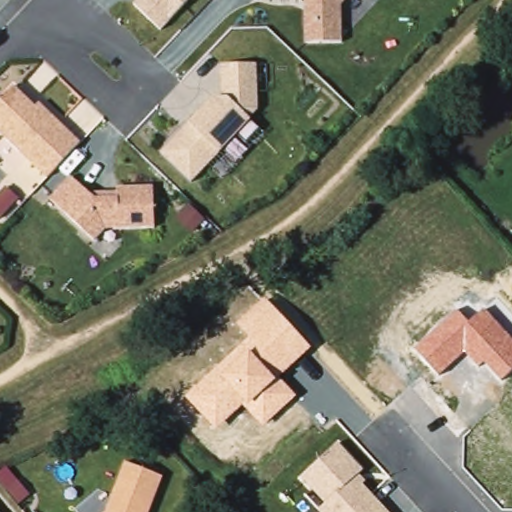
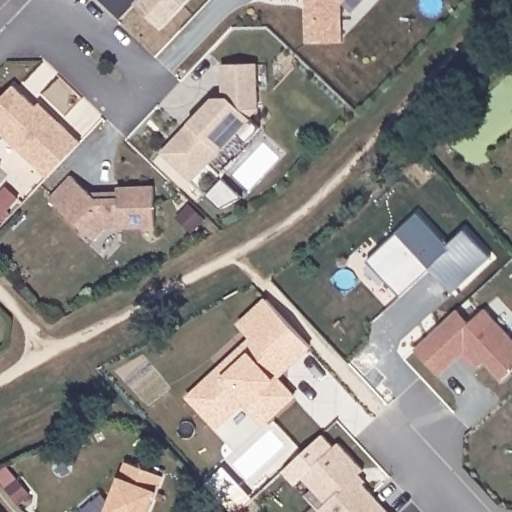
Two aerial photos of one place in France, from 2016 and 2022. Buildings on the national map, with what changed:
unchanged [(135,4),(138,0),(189,0),(161,29),(135,4)]
unchanged [(343,42),(307,42),(307,9),(306,0),(345,0),(342,4),(343,42)]
unchanged [(191,122),(189,120),(216,93),(221,95),(219,63),(257,61),(258,106),(251,113),(253,115),(222,150),(193,180),(163,152),(191,122)]
unchanged [(60,122),(81,142),(60,165),(48,177),(28,158),(6,137),(0,131),(0,100),(14,85),(36,107),(40,102),(60,122)]
unchanged [(154,186),(156,227),(123,227),(106,229),(96,240),(82,228),(51,199),(71,176),(91,193),(118,192),(118,187),(154,186)]
new [(223,177),(243,197),(221,208),(207,195),(223,177)]
new [(367,260),(418,212),(448,244),(465,229),(491,257),(453,292),(430,267),(400,296),(367,260)]
unchanged [(278,378),(296,397),(263,428),(242,406),(215,430),(184,397),(251,338),(237,324),(263,297),(311,348),(278,378)]
unchanged [(502,382),(484,362),(478,367),(466,353),(439,377),(413,351),(456,311),(468,323),(484,308),(512,339),(512,372),(502,382)]
unchanged [(318,510),(326,503),(303,477),(340,443),(365,468),(358,476),(391,512),(320,512),(318,510)]
unchanged [(127,462),(164,477),(149,512),(106,512),(127,462)]

